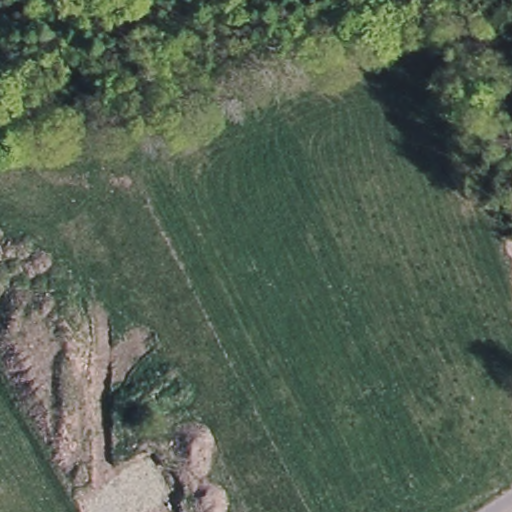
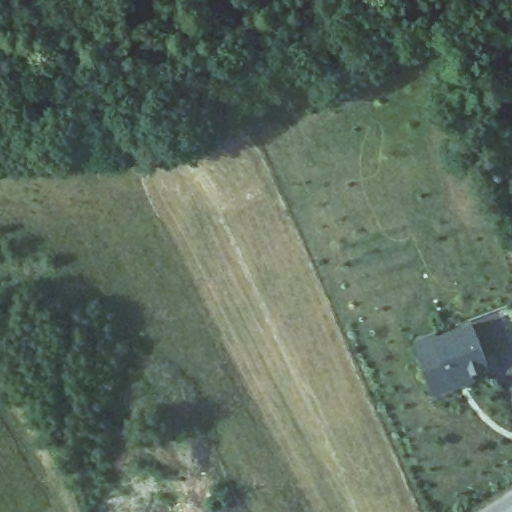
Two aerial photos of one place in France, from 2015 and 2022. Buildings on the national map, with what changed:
new [(491,367),(474,373),(476,379),(435,395),(415,339),(433,332),(434,335),(475,321),(491,367)]

